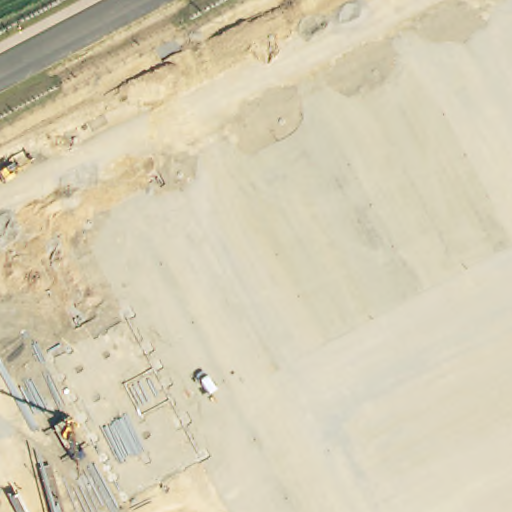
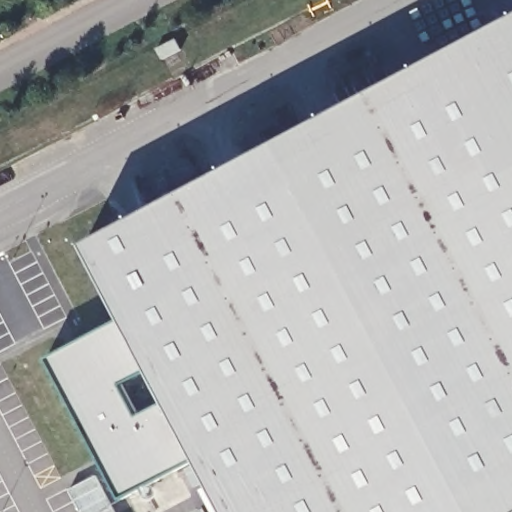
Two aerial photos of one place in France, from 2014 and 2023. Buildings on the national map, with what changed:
new [(123,498),(47,358),(123,315),(85,244),(512,18),(512,512),(228,512),(199,456),(123,498)]

